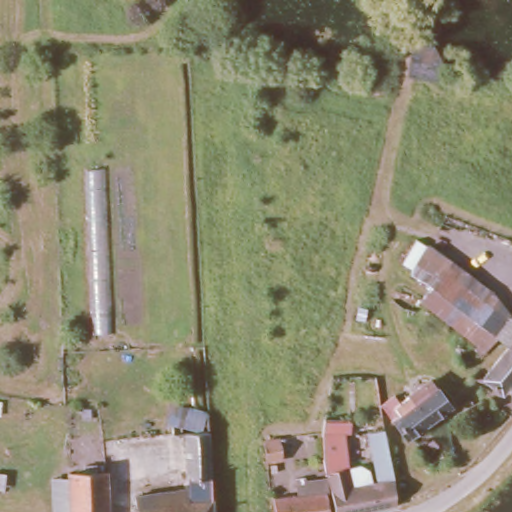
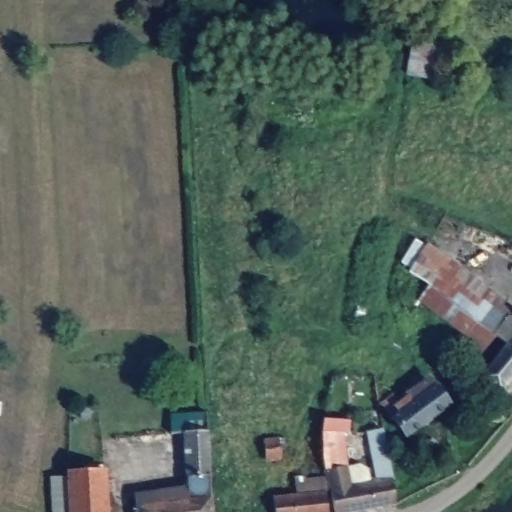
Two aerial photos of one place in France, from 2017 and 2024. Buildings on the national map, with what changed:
unchanged [(442,62),(440,73),(412,69),(416,36),(429,39),(442,62)]
unchanged [(432,243),(494,291),(512,314),(512,345),(498,334),(428,282),(414,270),(432,243)]
unchanged [(498,334),(488,348),(439,312),(404,285),(414,270),(428,282),(498,334)]
unchanged [(507,392),(487,376),(512,345),(512,386),(507,392)]
unchanged [(393,412),(399,407),(394,401),(409,391),(413,396),(417,393),(411,386),(422,378),(428,387),(435,382),(448,400),(406,430),(393,412)]
unchanged [(139,496),(191,489),(188,434),(176,434),(176,415),(211,414),(217,512),(140,512),(139,496)]
unchanged [(353,478),(364,477),(366,486),(383,484),(373,435),(389,435),(399,482),(401,508),(381,512),(338,512),(336,499),(325,456),(326,437),(326,433),(329,423),(354,424),(354,434),(348,434),(350,466),(353,478)]
unchanged [(286,449),(282,450),(283,456),(266,459),(263,439),(284,437),(286,449)]
unchanged [(116,512),(64,512),(64,494),(78,493),(78,471),(114,470),(116,512)]
unchanged [(303,497),(302,487),(324,484),(326,494),(331,494),(333,512),(278,512),(276,501),(303,497)]

